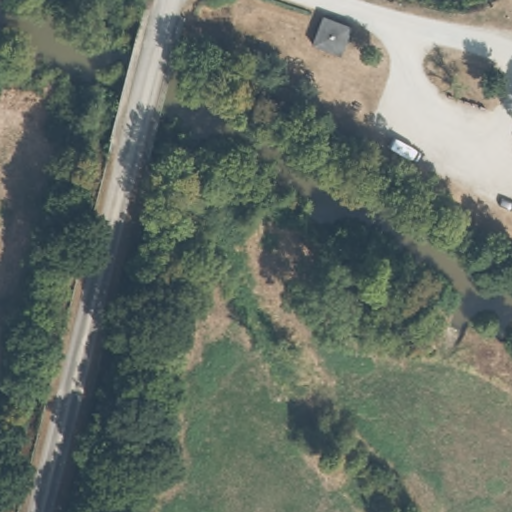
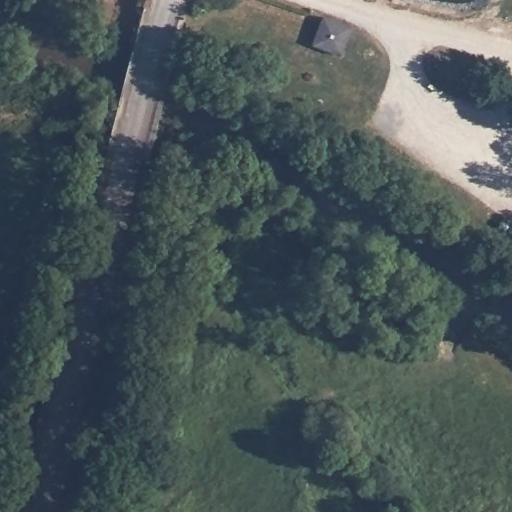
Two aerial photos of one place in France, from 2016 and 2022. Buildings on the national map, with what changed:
unchanged [(308,50),(319,21),(349,33),(336,61),(308,50)]

